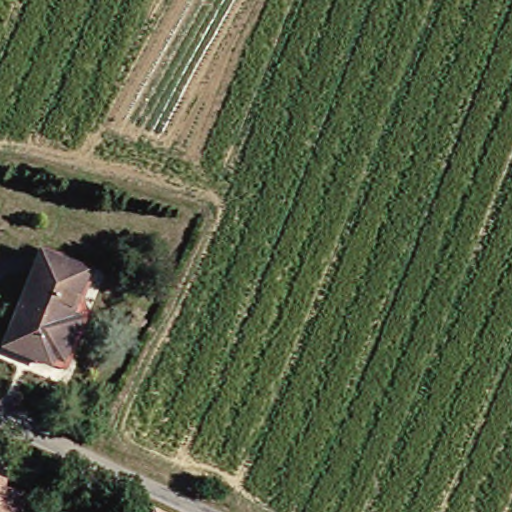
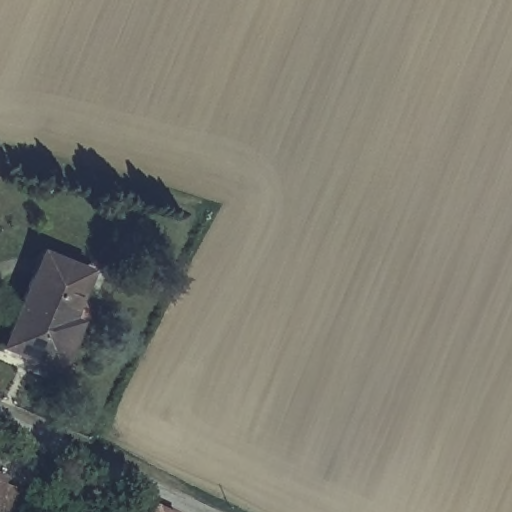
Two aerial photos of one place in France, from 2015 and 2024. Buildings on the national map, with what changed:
unchanged [(0,345),(0,343),(2,336),(37,252),(82,271),(59,330),(65,333),(55,360),(46,357),(44,365),(0,345)]
unchanged [(19,493),(16,512),(0,512),(0,486),(19,493)]
unchanged [(153,510),(158,512),(152,512),(153,510)]

